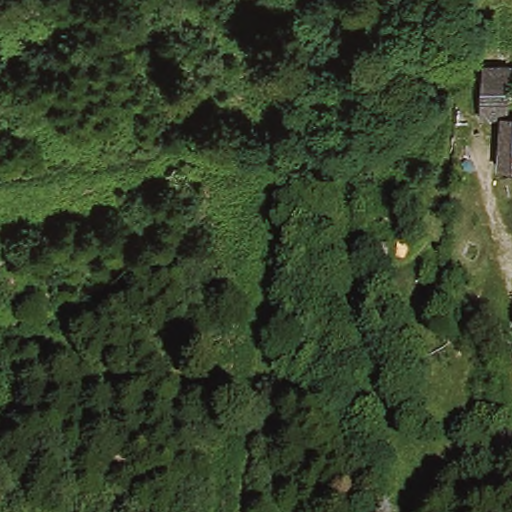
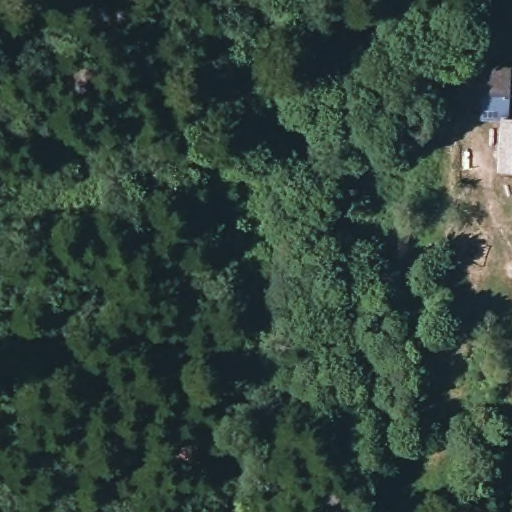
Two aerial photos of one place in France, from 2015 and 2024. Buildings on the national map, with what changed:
unchanged [(489,172),(492,122),(477,121),(480,82),(512,84),(512,171),(489,172)]

